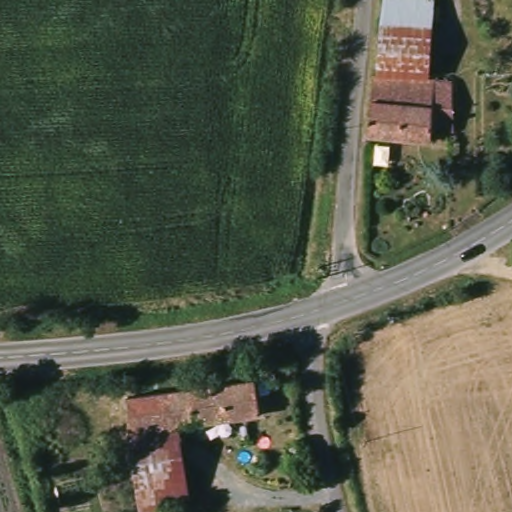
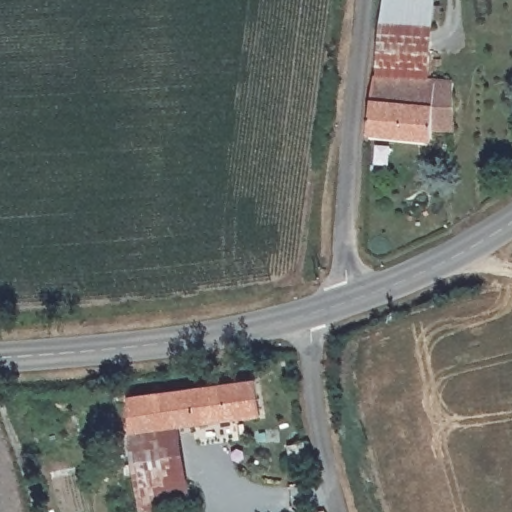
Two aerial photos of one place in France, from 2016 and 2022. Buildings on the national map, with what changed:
unchanged [(382,0),(408,0),(434,0),(430,84),(373,81),(382,0)]
unchanged [(456,86),(454,112),(444,111),(443,126),(434,126),(432,143),(367,140),(373,81),(430,84),(456,86)]
unchanged [(126,396),(255,380),(260,417),(179,428),(189,506),(154,512),(138,512),(127,434),(126,396)]
unchanged [(311,458),(302,460),(306,472),(293,476),(283,444),(306,438),(311,458)]

